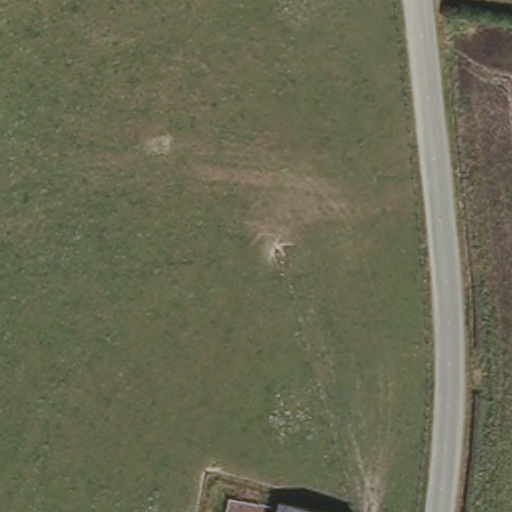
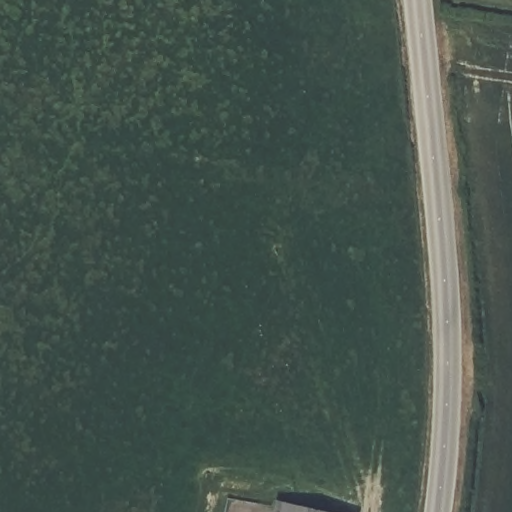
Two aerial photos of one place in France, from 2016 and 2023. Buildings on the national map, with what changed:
unchanged [(362,510),(361,512),(278,512),(283,491),(362,510)]

